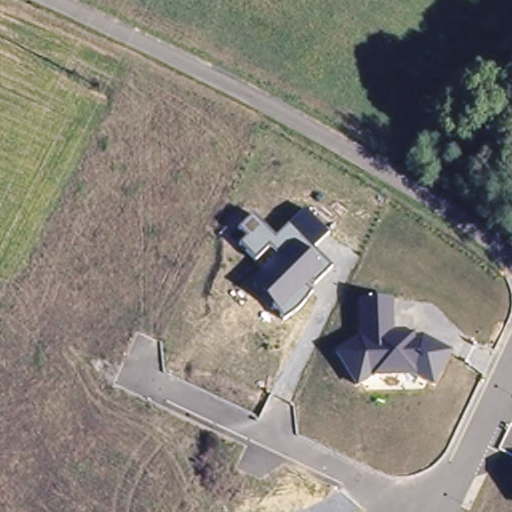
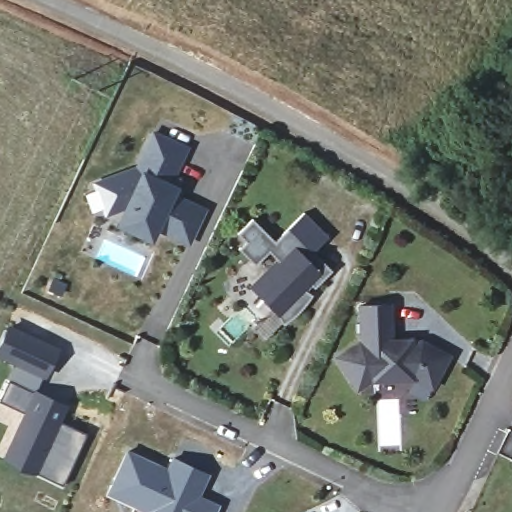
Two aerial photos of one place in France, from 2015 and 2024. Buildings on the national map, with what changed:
new [(185,149),(170,189),(169,192),(205,210),(189,248),(153,230),(132,221),(127,207),(129,204),(120,200),(104,207),(96,184),(137,171),(153,135),(185,149)]
unchanged [(251,219),(273,242),(302,213),(327,238),(313,253),(331,271),(313,288),(310,285),(305,290),(310,296),(299,311),(282,322),(250,286),(279,259),(269,250),(253,265),(238,249),(246,241),(238,232),(251,219)]
unchanged [(392,302),(393,335),(421,338),(452,353),(432,392),(413,382),(371,382),(354,391),(335,355),(355,340),(357,302),(392,302)]
new [(68,405),(60,423),(84,435),(61,487),(36,476),(3,460),(22,413),(0,401),(0,398),(7,382),(14,363),(0,356),(0,341),(6,326),(59,350),(44,380),(41,377),(35,392),(68,405)]
new [(166,466),(171,456),(210,474),(201,495),(220,503),(216,512),(142,512),(105,495),(126,448),(166,466)]

